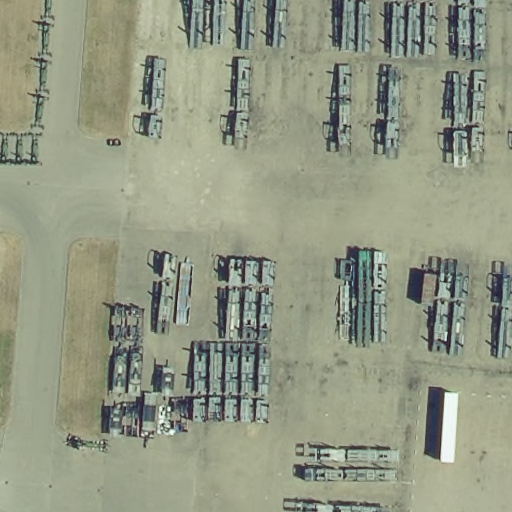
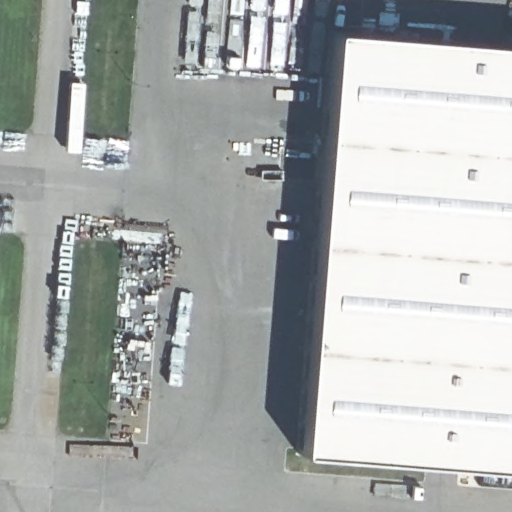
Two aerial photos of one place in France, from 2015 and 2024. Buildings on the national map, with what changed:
new [(330,33),(512,47),(512,469),(297,452),(330,33)]

